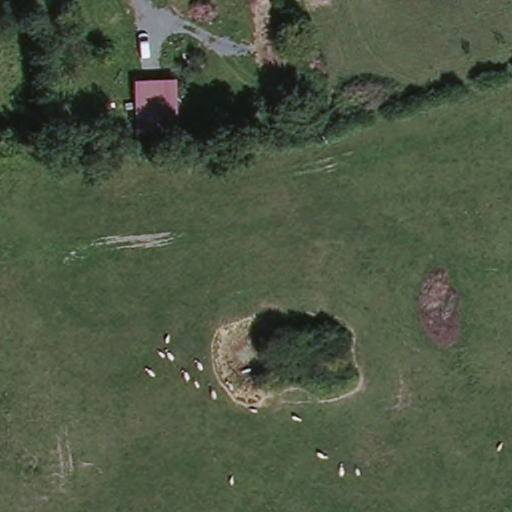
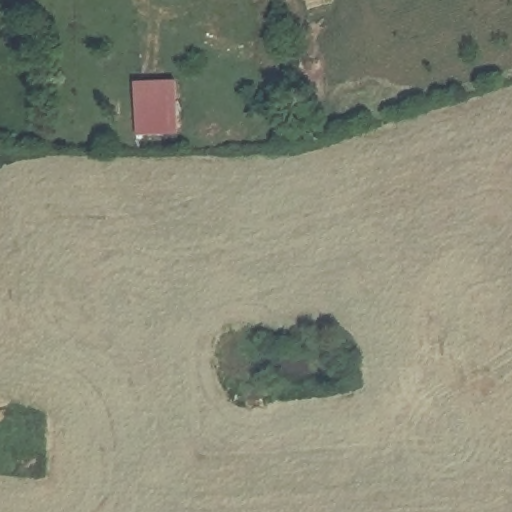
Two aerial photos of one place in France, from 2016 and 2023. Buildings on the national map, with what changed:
unchanged [(171,83),(171,123),(133,125),(139,84),(171,83)]

